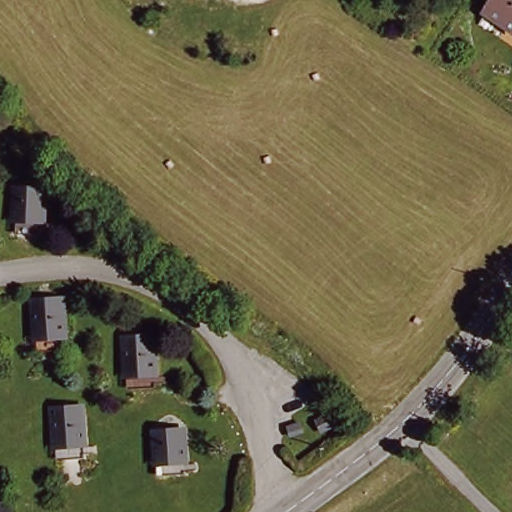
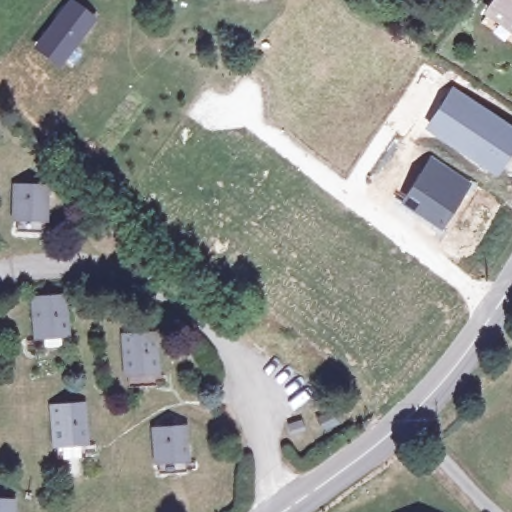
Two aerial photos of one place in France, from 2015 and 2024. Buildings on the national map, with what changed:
new [(58,68),(32,49),(68,0),(70,0),(97,19),(58,68)]
unchanged [(494,3),(496,0),(512,0),(512,17),(494,3)]
new [(452,83),(512,123),(512,156),(498,176),(425,127),(452,83)]
new [(431,153),(474,182),(442,227),(402,199),(431,153)]
unchanged [(48,176),(45,221),(27,220),(30,176),(48,176)]
unchanged [(63,295),(67,328),(48,330),(45,297),(63,295)]
unchanged [(159,335),(160,367),(141,368),(140,336),(159,335)]
unchanged [(87,406),(88,438),(69,439),(67,407),(87,406)]
unchanged [(187,424),(187,458),(167,459),(165,425),(187,424)]
unchanged [(14,512),(0,512),(0,503),(15,503),(14,512)]

